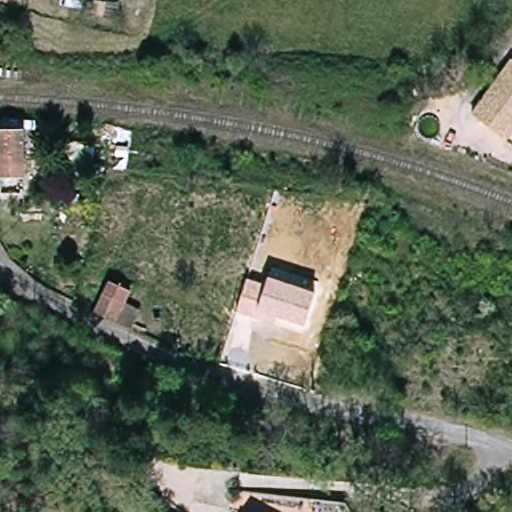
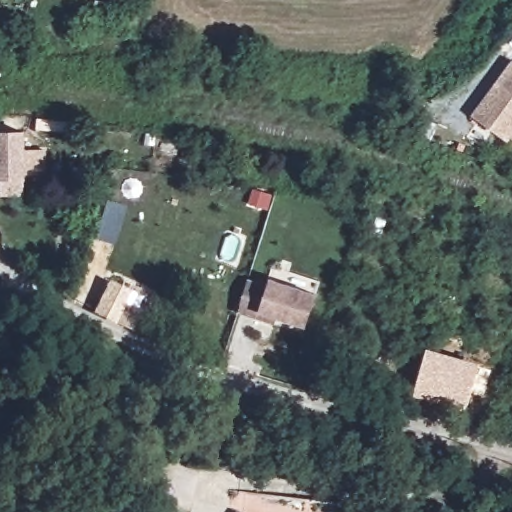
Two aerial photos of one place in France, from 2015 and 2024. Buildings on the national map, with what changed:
unchanged [(497,129),(477,115),(512,65),(512,140),(497,129)]
unchanged [(1,198),(1,179),(0,179),(0,133),(26,134),(24,197),(13,197),(1,198)]
new [(48,152),(48,176),(27,175),(28,152),(48,152)]
unchanged [(96,312),(109,279),(131,288),(124,304),(141,310),(134,328),(96,312)]
unchanged [(266,285),(268,279),(315,294),(305,327),(276,318),(274,325),(236,312),(247,279),(266,285)]
new [(479,362),(465,407),(415,392),(427,347),(479,362)]

